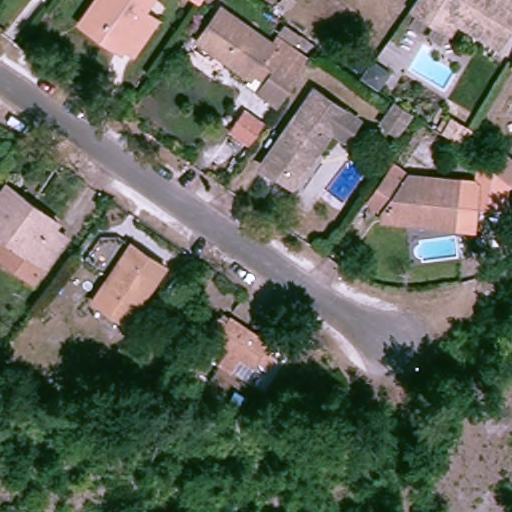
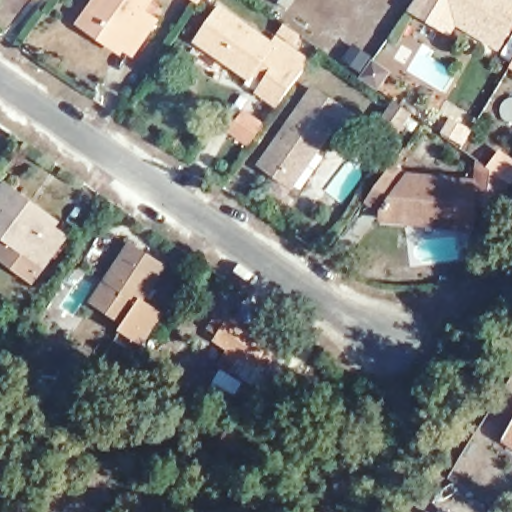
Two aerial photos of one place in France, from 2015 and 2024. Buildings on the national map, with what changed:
unchanged [(94,18),(106,0),(153,0),(145,12),(157,21),(134,55),(121,47),(126,40),(94,18)]
unchanged [(418,0),(512,0),(512,29),(503,44),(460,18),(453,28),(415,4),(418,0)]
unchanged [(274,46),(279,40),(292,49),(301,36),(319,49),(283,100),(265,87),(268,83),(255,73),(250,80),(198,42),(221,9),(274,46)]
unchanged [(287,189),(261,171),(309,101),(351,130),(337,149),(326,142),(311,164),(306,160),(287,189)]
unchanged [(382,124),(386,118),(396,104),(409,113),(410,113),(400,128),(396,134),(382,124)]
unchanged [(442,134),(449,121),(465,130),(457,143),(442,134)]
unchanged [(512,167),(512,175),(507,182),(487,168),(495,156),(512,167)]
unchanged [(378,212),(361,202),(388,164),(404,176),(472,183),(467,231),(424,227),(377,222),(378,212)]
unchanged [(0,252),(0,251),(10,238),(0,230),(0,200),(11,184),(25,194),(22,198),(40,211),(43,207),(64,222),(60,228),(72,237),(50,267),(40,281),(0,252)]
unchanged [(132,321),(97,298),(127,252),(135,239),(151,250),(171,263),(132,321)]
unchanged [(253,356),(217,331),(221,325),(211,319),(217,309),(227,316),(231,310),(268,335),(264,340),(274,347),(267,357),(257,351),(253,356)]
new [(512,449),(499,441),(512,420),(512,449)]

